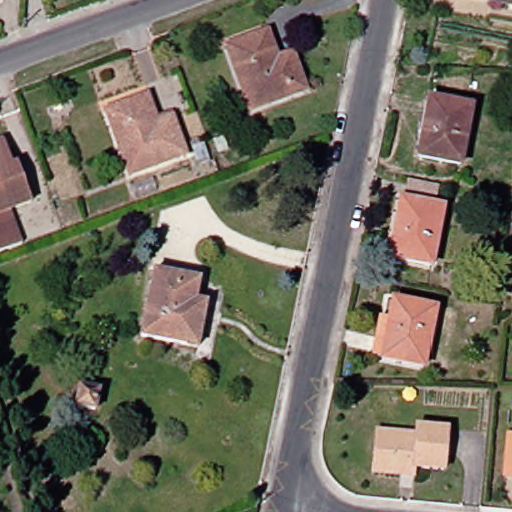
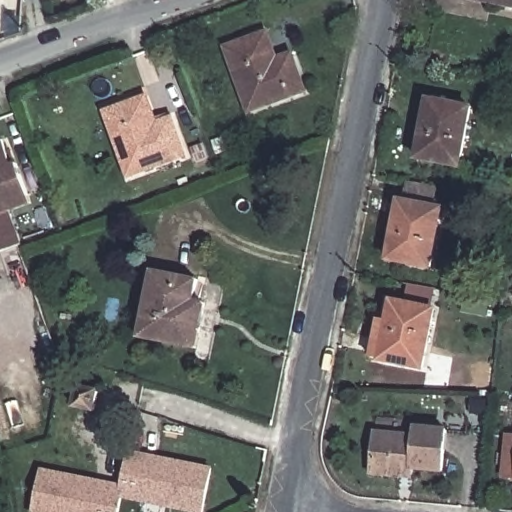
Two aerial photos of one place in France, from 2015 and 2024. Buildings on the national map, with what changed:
unchanged [(465,0),(466,0),(512,0),(512,9),(465,0)]
unchanged [(306,92),(252,113),(227,49),(261,36),(268,33),(279,60),(292,55),(306,92)]
unchanged [(186,158),(131,178),(106,113),(140,101),(147,98),(157,124),(172,119),(186,158)]
unchanged [(459,167),(417,160),(430,102),(471,110),(459,167)]
unchanged [(12,167),(17,165),(31,205),(11,213),(24,246),(0,254),(0,143),(3,142),(12,167)]
unchanged [(208,159),(199,163),(194,150),(202,146),(208,159)]
unchanged [(430,269),(390,260),(402,201),(443,211),(430,269)]
unchanged [(197,349),(186,347),(142,338),(155,273),(200,282),(195,304),(206,306),(197,349)]
unchanged [(380,322),(388,324),(392,301),(435,310),(423,370),(381,361),(381,360),(373,358),(380,322)]
unchanged [(96,412),(77,408),(81,389),(100,393),(96,412)]
unchanged [(402,478),(374,475),(377,434),(416,437),(417,429),(446,432),(442,473),(412,470),(411,478),(402,478)]
unchanged [(504,478),(507,438),(512,438),(512,478),(504,478)]
new [(122,489),(129,455),(210,471),(202,512),(186,512),(120,499),(118,512),(33,512),(40,473),(122,489)]

